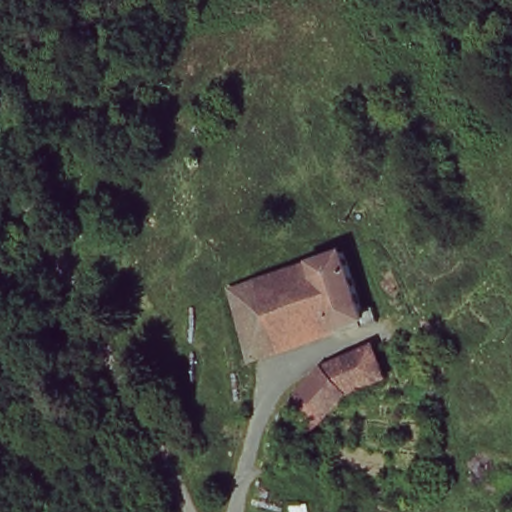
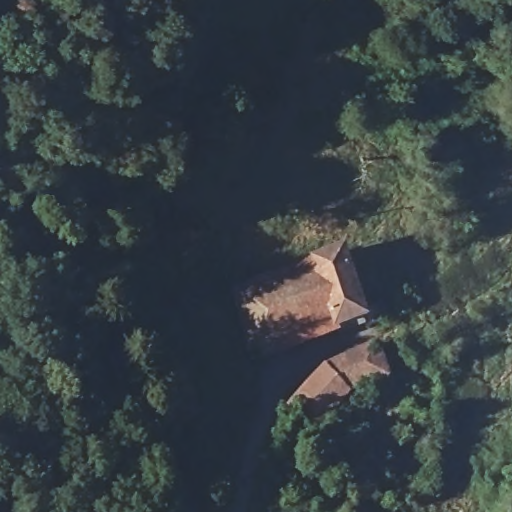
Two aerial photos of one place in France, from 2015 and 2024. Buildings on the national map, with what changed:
unchanged [(347,255),(372,321),(282,352),(258,287),(347,255)]
unchanged [(260,359),(235,296),(258,287),(282,352),(260,359)]
unchanged [(306,423),(280,399),(316,359),(321,366),(354,354),(354,350),(369,344),(372,352),(390,345),(398,370),(381,378),(338,397),(306,423)]
unchanged [(277,407),(285,411),(266,450),(259,447),(277,407)]
unchanged [(297,492),(288,512),(263,512),(276,482),(297,492)]

